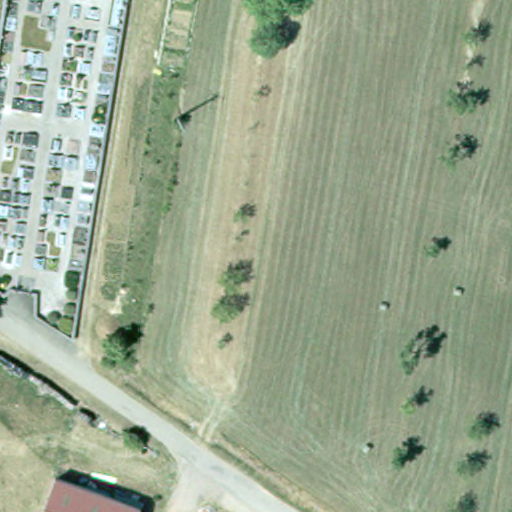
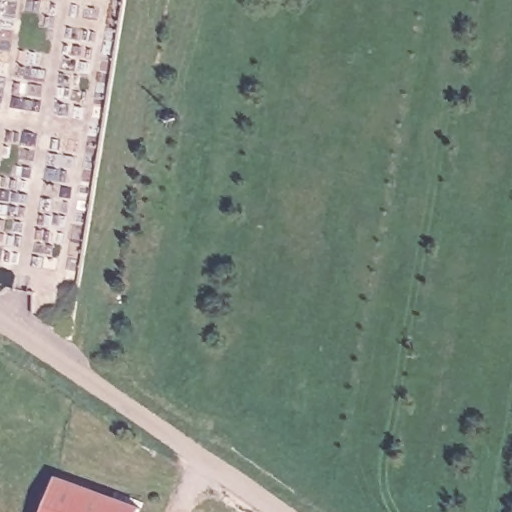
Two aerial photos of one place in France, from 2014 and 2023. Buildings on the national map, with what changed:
unchanged [(141,512),(45,512),(60,472),(145,503),(141,512)]

